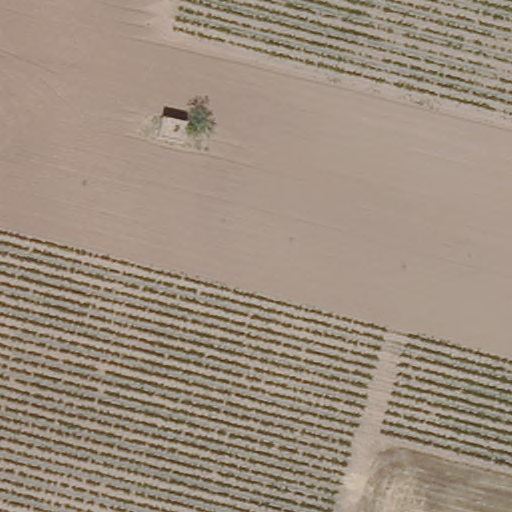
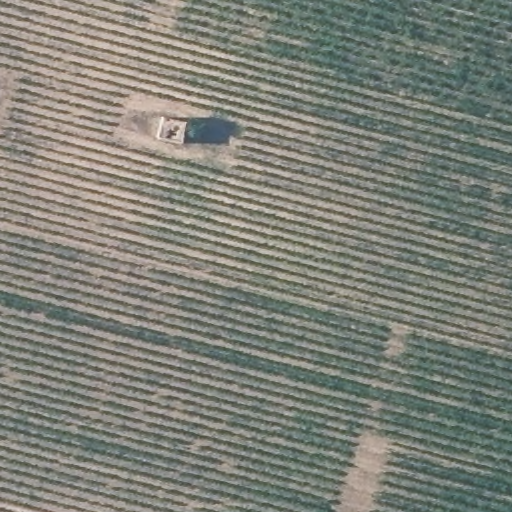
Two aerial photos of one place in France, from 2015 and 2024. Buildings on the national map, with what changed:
unchanged [(185,125),(181,145),(157,140),(162,119),(185,125)]

